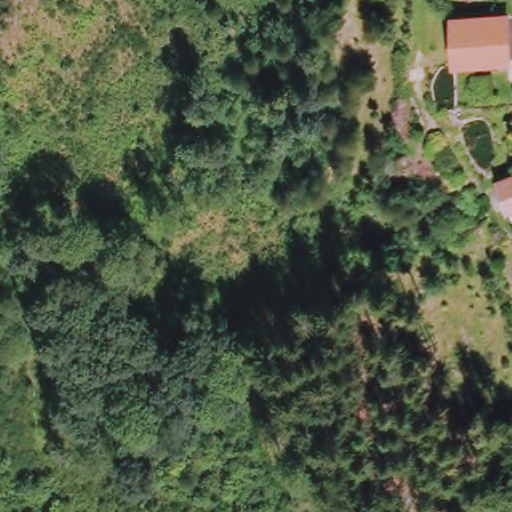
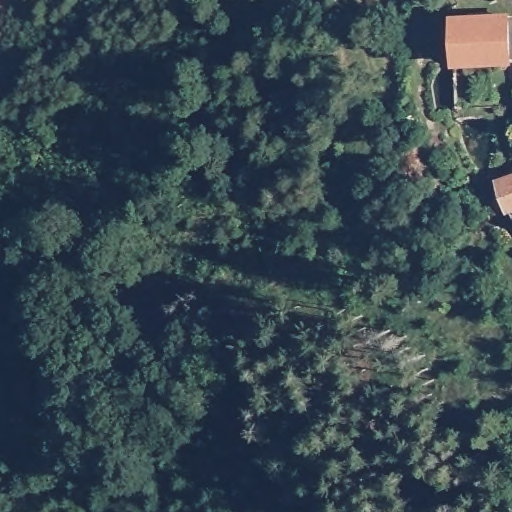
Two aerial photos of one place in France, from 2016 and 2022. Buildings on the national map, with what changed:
unchanged [(450,65),(448,14),(510,12),(511,63),(450,65)]
unchanged [(491,212),(485,182),(512,176),(512,208),(491,212)]

